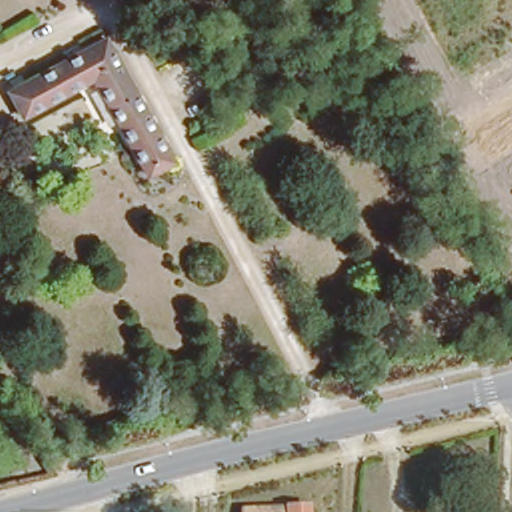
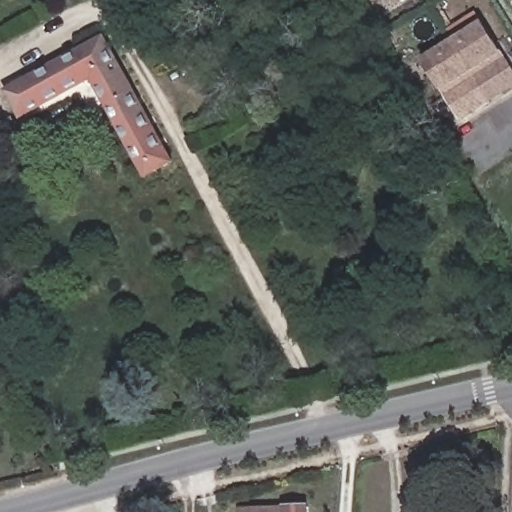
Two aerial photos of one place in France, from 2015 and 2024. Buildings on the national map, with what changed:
new [(398,5),(390,8),(385,0),(408,0),(398,5)]
new [(445,95),(444,92),(423,59),(484,21),(503,54),(505,57),(512,67),(512,90),(462,121),(445,95)]
unchanged [(15,92),(104,40),(148,119),(125,132),(96,80),(29,117),(15,92)]
unchanged [(175,166),(149,180),(125,132),(148,119),(175,166)]
unchanged [(312,498),(312,512),(248,512),(250,495),(312,498)]

